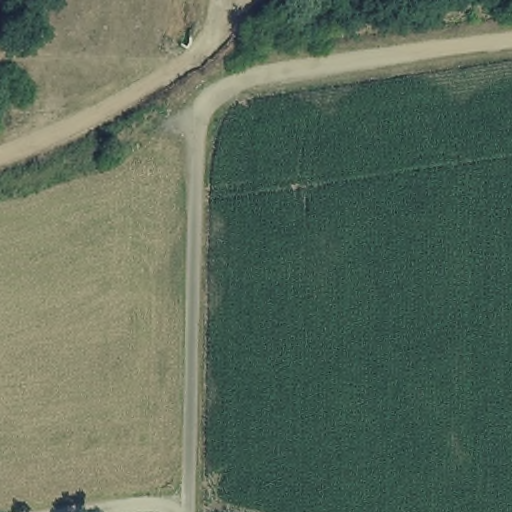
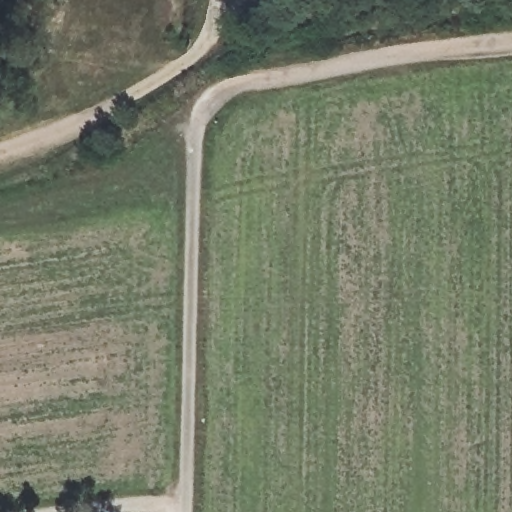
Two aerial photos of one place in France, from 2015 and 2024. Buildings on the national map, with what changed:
[]

